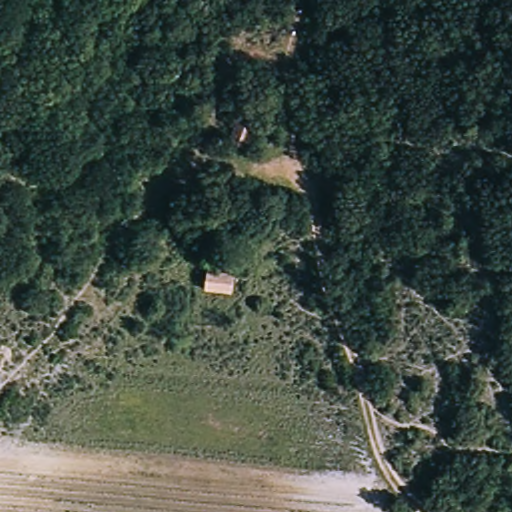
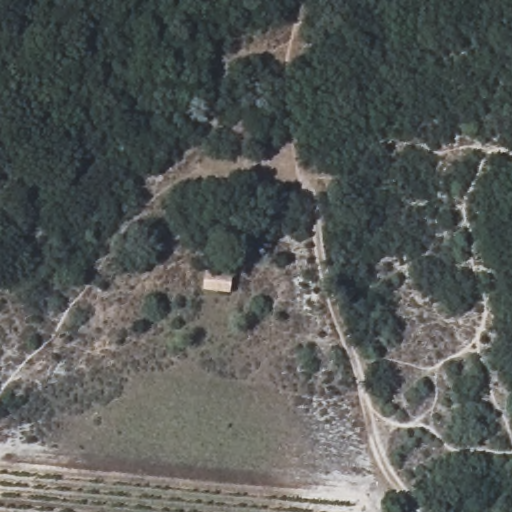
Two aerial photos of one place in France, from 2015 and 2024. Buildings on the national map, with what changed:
unchanged [(239,117),(257,123),(247,148),(229,143),(239,117)]
unchanged [(208,269),(235,271),(233,293),(206,289),(208,269)]

